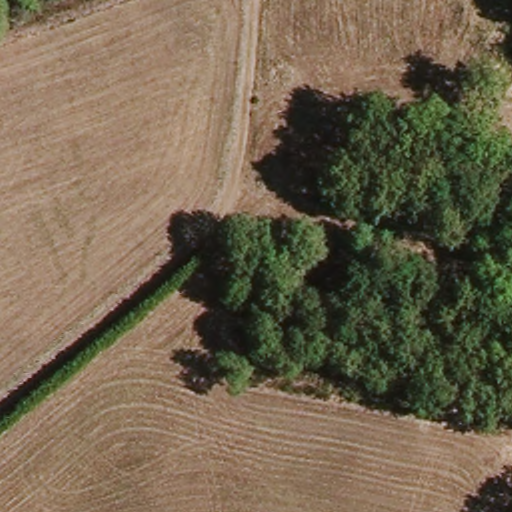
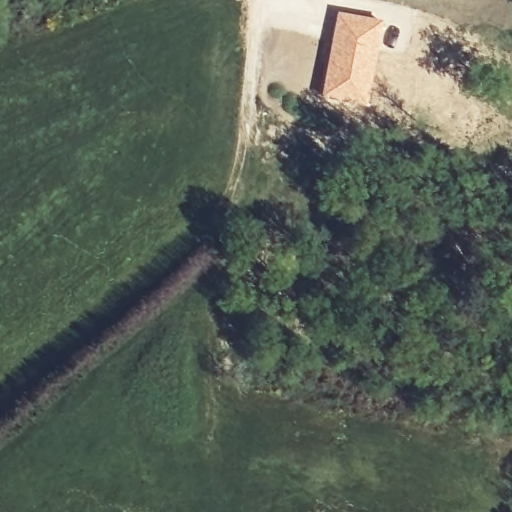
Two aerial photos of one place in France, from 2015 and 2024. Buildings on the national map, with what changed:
new [(337,11),(384,20),(366,106),(321,96),(337,11)]

